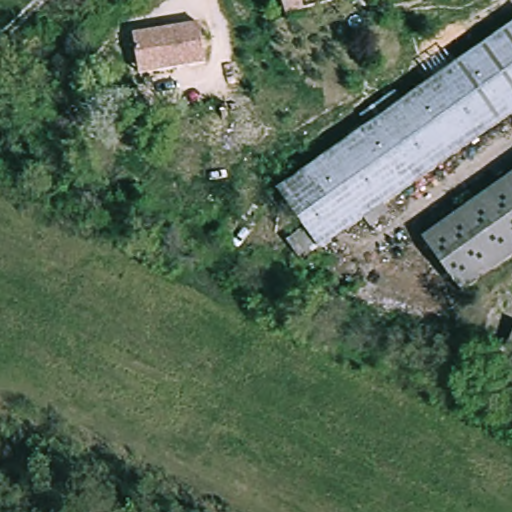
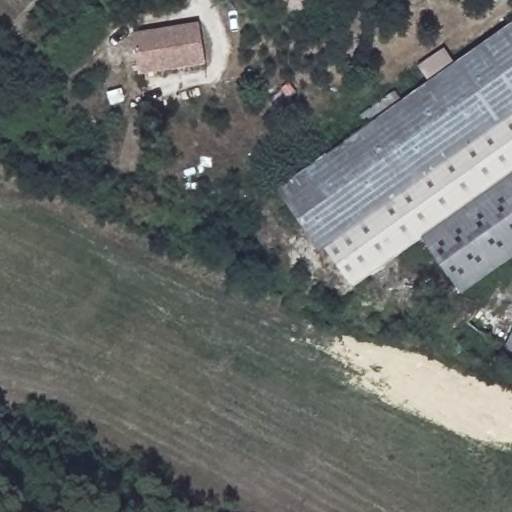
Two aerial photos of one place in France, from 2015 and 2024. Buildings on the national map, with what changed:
unchanged [(290,13),(287,1),(286,0),(307,0),(309,8),(290,13)]
unchanged [(136,57),(132,33),(198,23),(204,63),(156,70),(138,73),(136,57)]
unchanged [(324,250),(282,191),(372,128),(364,117),(398,93),(406,104),(512,28),(512,117),(324,250)]
new [(425,238),(425,237),(355,287),(326,249),(512,118),(512,176),(425,238)]
unchanged [(425,238),(512,176),(512,258),(466,292),(425,238)]

